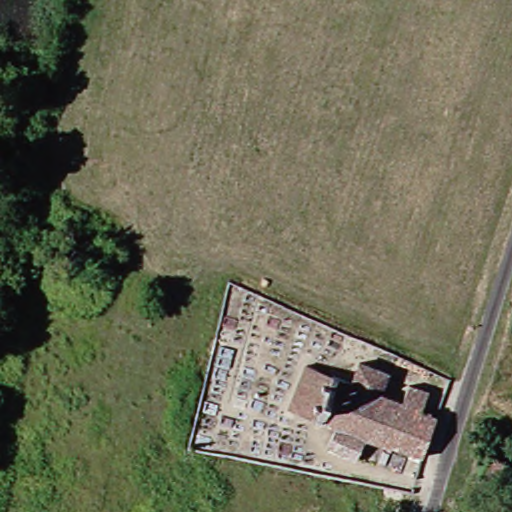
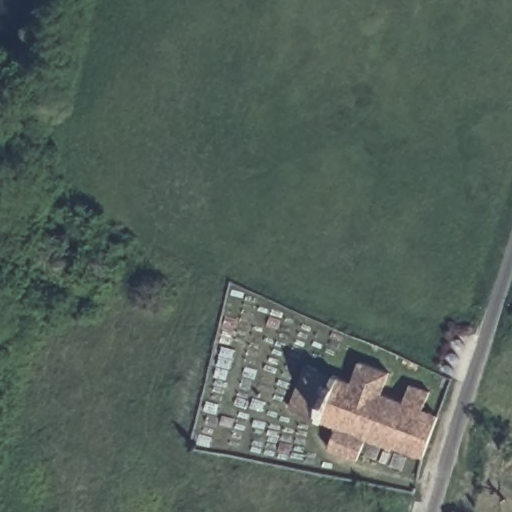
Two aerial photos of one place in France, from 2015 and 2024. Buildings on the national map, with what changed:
unchanged [(326,413),(301,402),(320,363),(343,375),(326,413)]
unchanged [(427,465),(371,435),(363,455),(334,443),(343,421),(326,413),(343,375),(360,382),(368,364),(391,377),(384,394),(405,407),(413,389),(435,399),(427,417),(445,425),(427,465)]

